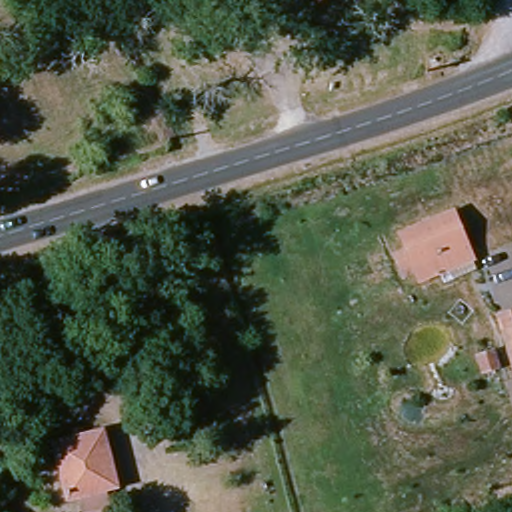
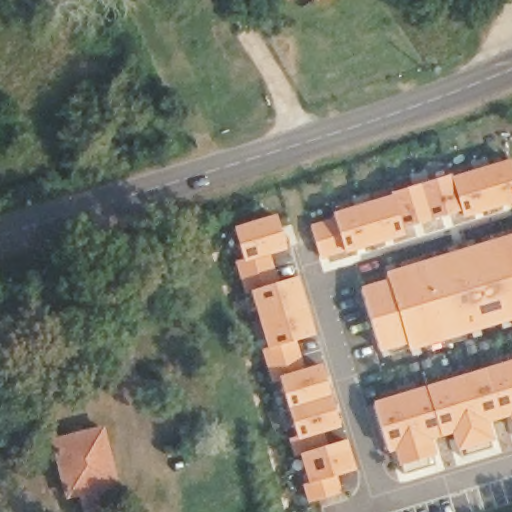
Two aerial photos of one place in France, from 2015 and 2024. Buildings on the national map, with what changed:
unchanged [(327,15),(317,0),(349,0),(339,7),(327,15)]
new [(334,214),(393,197),(392,192),(452,175),(452,179),(512,162),(512,200),(463,215),(462,211),(403,229),(405,232),(345,250),(345,249),(321,257),(312,227),(336,221),(334,214)]
demolished [(416,278),(402,284),(393,259),(407,253),(401,234),(450,216),(466,266),(418,285),(416,278)]
new [(277,217),(287,247),(268,252),(277,282),(296,277),(313,335),(295,341),(304,372),(323,366),(341,424),(322,430),(327,446),(346,440),(355,470),(336,476),(341,492),(312,501),(307,483),(310,482),(302,455),(298,456),(292,437),(297,436),(280,381),(276,382),(266,348),(271,347),(254,291),(249,292),(240,260),(245,258),(236,230),(277,217)]
new [(410,351),(407,345),(382,352),(361,287),(387,279),(385,272),(512,234),(512,320),(410,351)]
demolished [(511,355),(505,343),(493,311),(512,304),(512,354),(511,355)]
new [(511,416),(488,422),(493,441),(457,452),(452,433),(432,438),(437,456),(400,467),(396,450),(387,452),(372,402),(512,360),(512,421),(511,416)]
unchanged [(46,444),(97,427),(117,480),(105,484),(112,506),(96,512),(91,512),(83,490),(67,496),(46,444)]

